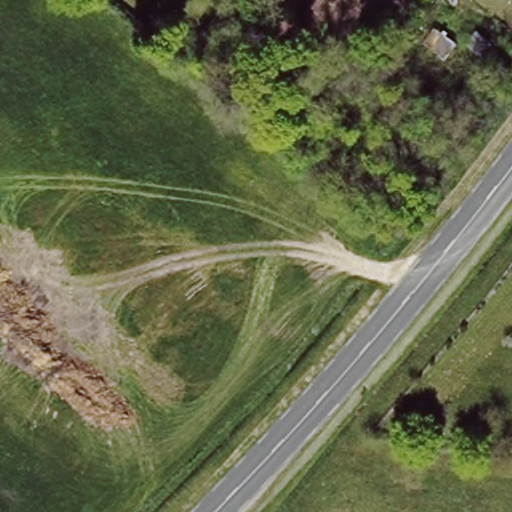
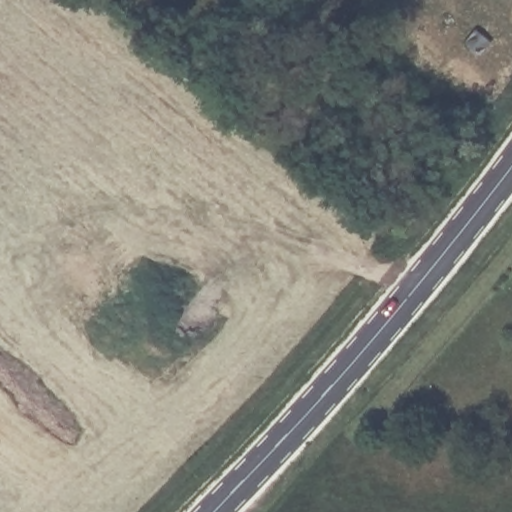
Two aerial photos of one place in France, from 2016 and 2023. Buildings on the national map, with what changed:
[]

